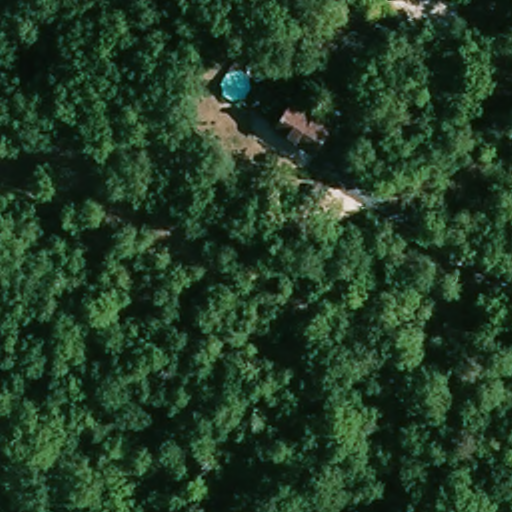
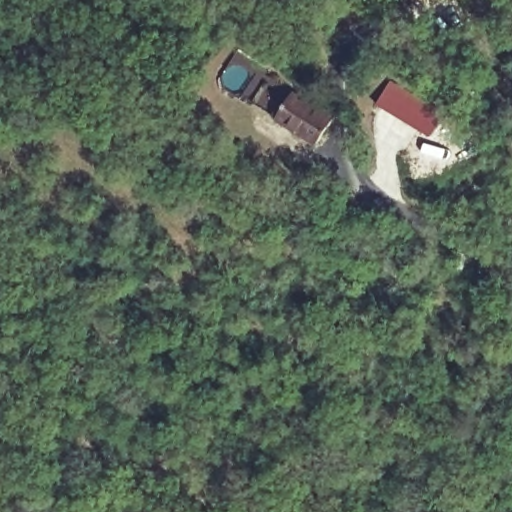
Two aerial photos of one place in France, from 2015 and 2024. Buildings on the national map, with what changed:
new [(445,113),(430,138),(376,106),(391,81),(445,113)]
unchanged [(301,93),(336,112),(343,116),(328,142),(286,119),(291,110),(301,93)]

